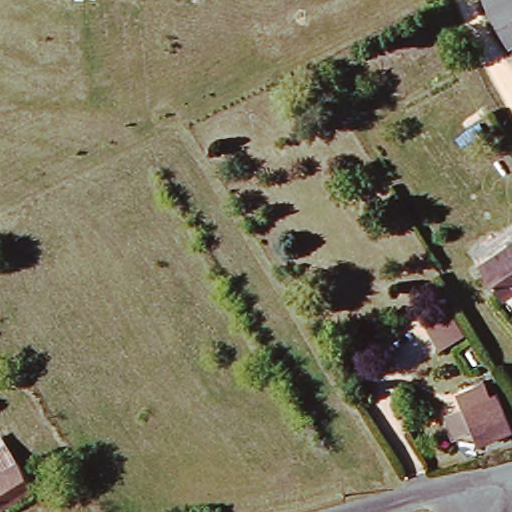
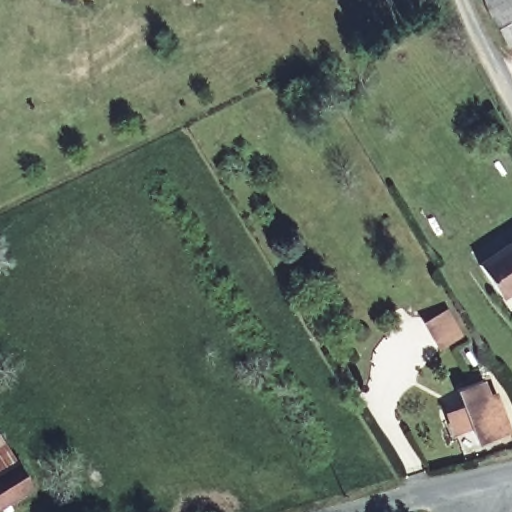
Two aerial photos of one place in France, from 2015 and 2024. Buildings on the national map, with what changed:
unchanged [(489,0),(512,0),(512,40),(489,0)]
unchanged [(512,250),(512,295),(504,299),(484,265),(512,250)]
unchanged [(424,369),(415,362),(400,349),(419,330),(440,349),(434,356),(424,369)]
unchanged [(498,409),(506,405),(512,416),(512,444),(494,453),(486,439),(469,449),(459,429),(476,419),(469,407),(490,395),(498,409)]
unchanged [(25,465),(42,492),(8,512),(0,512),(0,458),(16,449),(25,465)]

